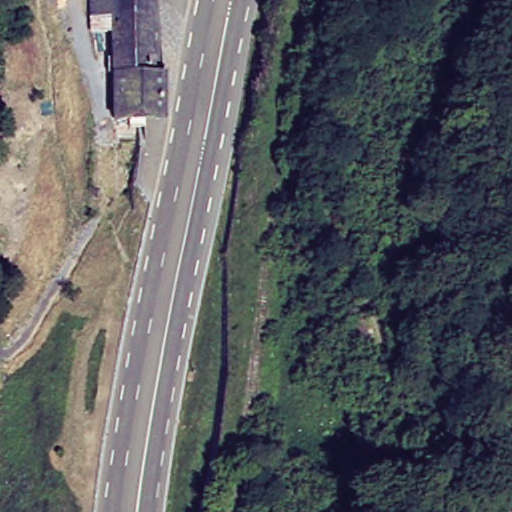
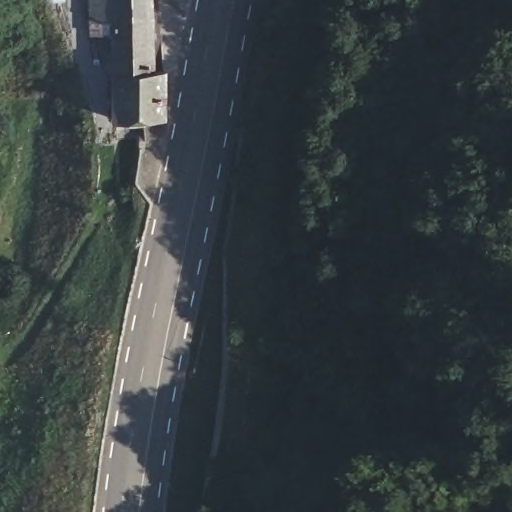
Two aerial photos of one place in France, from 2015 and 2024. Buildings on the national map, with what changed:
unchanged [(116,82),(109,82),(109,59),(114,59),(113,36),(90,37),(89,0),(153,0),(157,70),(168,70),(171,119),(116,121),(116,82)]

